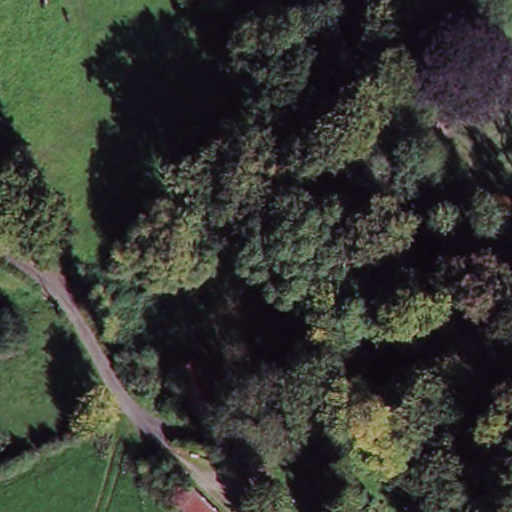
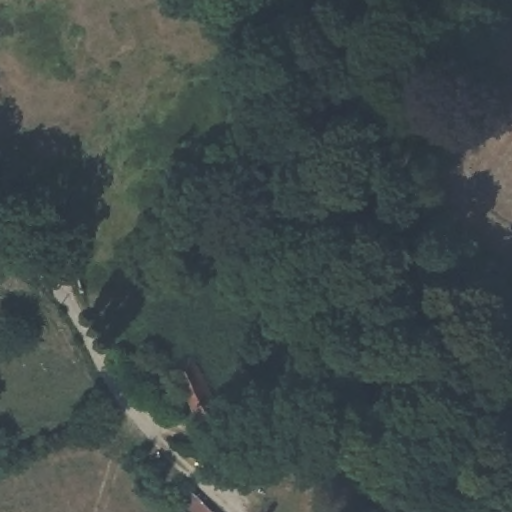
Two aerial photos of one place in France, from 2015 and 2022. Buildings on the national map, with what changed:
unchanged [(225,406),(205,418),(201,418),(172,368),(195,355),(225,406)]
unchanged [(179,512),(173,506),(192,488),(214,512),(179,512)]

